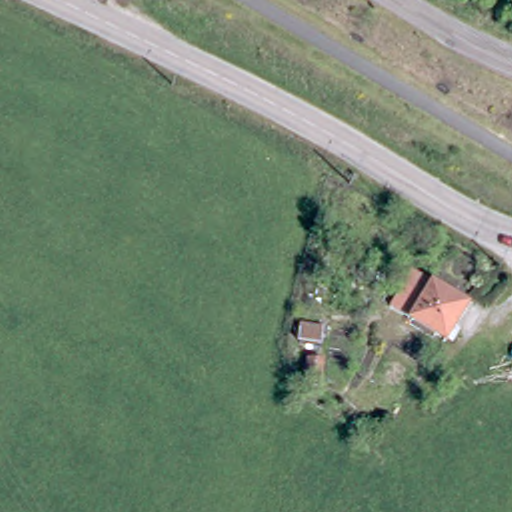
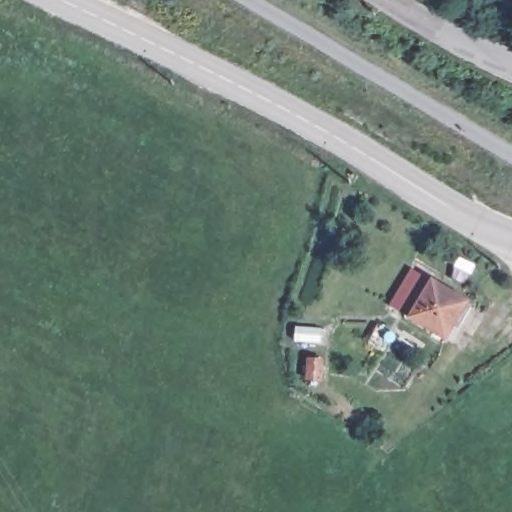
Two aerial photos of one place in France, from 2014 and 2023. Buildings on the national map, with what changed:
unchanged [(442,334),(407,313),(390,302),(411,270),(428,280),(463,300),(442,334)]
unchanged [(332,325),(331,344),(315,343),(316,323),(332,325)]
unchanged [(332,362),(333,384),(320,385),(318,362),(332,362)]

